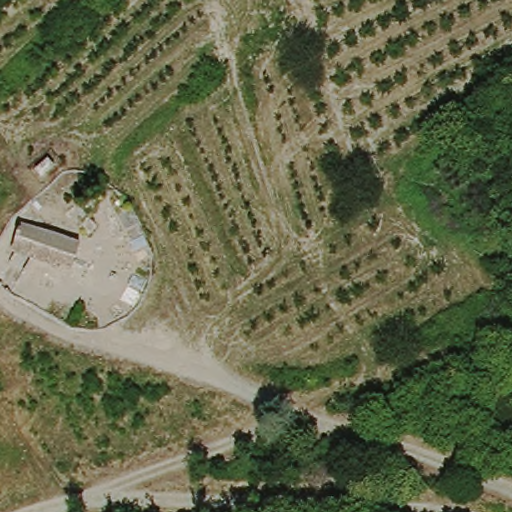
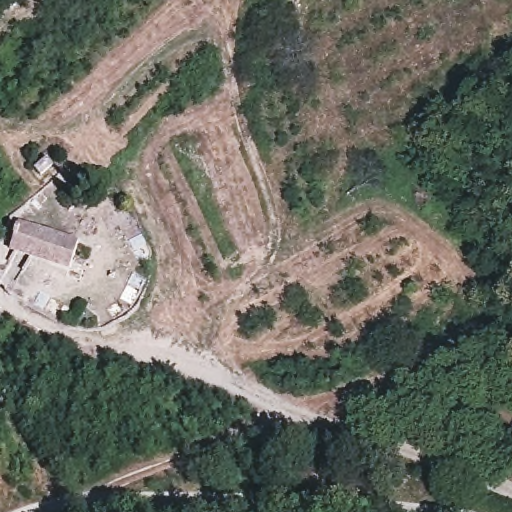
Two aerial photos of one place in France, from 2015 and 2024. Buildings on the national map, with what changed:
unchanged [(23,220),(82,240),(72,267),(14,245),(23,220)]

